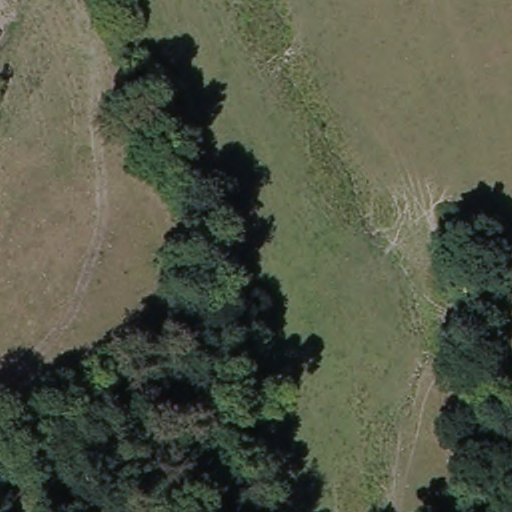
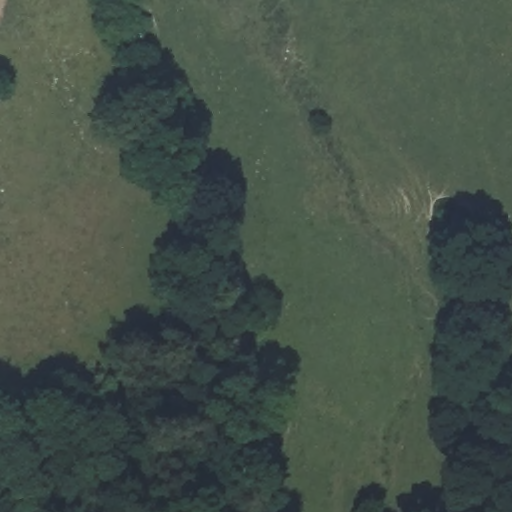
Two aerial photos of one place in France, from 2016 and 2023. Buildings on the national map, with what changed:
[]

